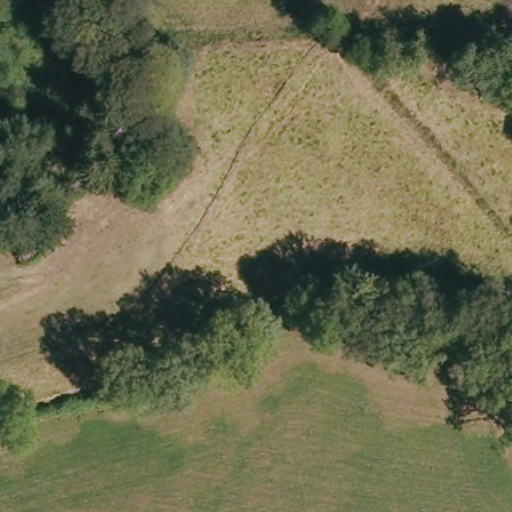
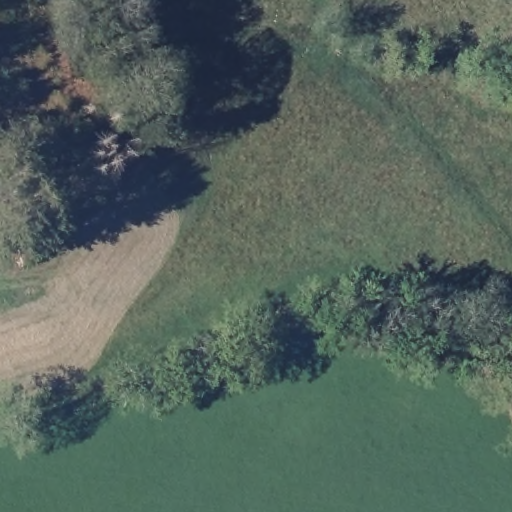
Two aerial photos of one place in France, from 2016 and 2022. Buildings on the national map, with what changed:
unchanged [(39,255),(22,261),(17,251),(31,245),(35,243),(39,255)]

